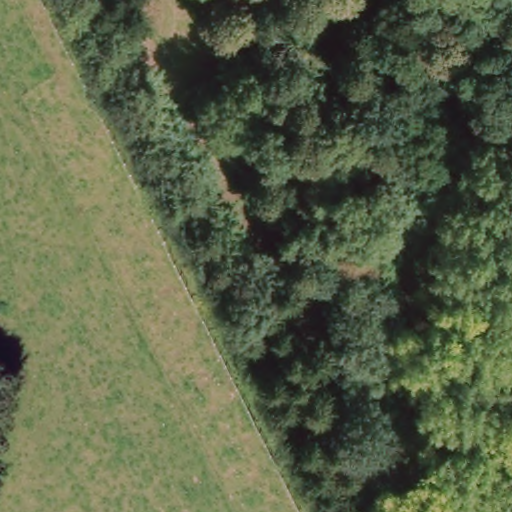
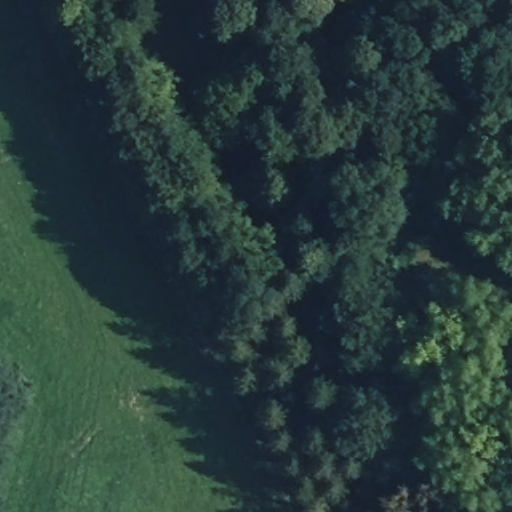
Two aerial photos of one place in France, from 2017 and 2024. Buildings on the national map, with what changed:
unchanged [(435,108),(458,119),(412,208),(389,196),(435,108)]

